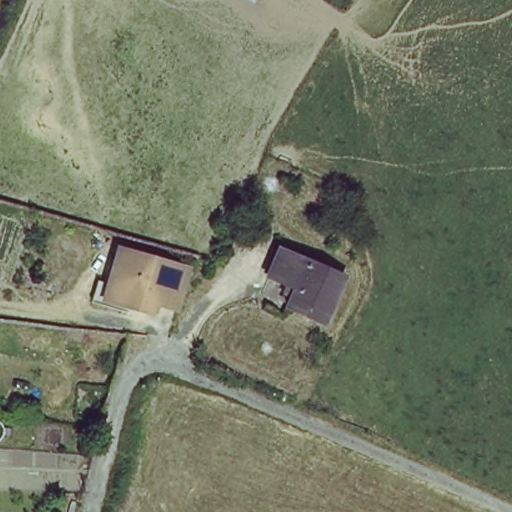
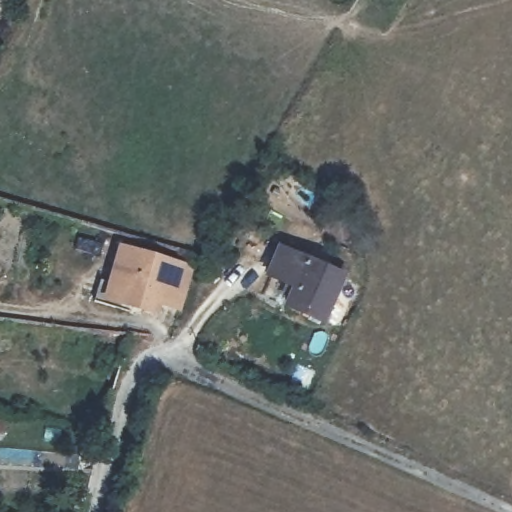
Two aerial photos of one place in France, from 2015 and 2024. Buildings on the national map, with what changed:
unchanged [(183,307),(161,300),(158,310),(122,299),(126,290),(117,287),(128,249),(195,267),(183,307)]
unchanged [(344,265),(333,313),(292,304),(297,282),(269,276),(275,249),(344,265)]

